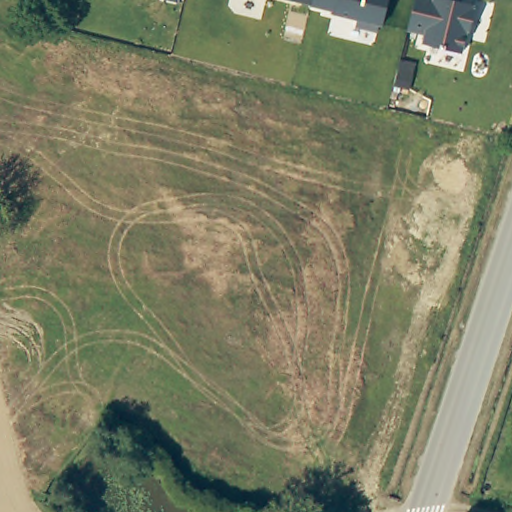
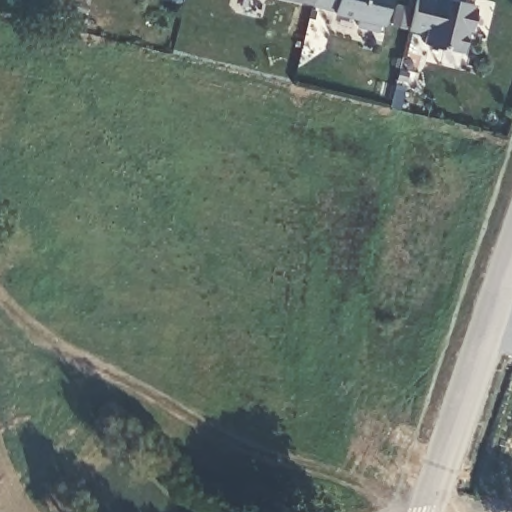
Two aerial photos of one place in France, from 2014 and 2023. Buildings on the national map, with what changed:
unchanged [(378,24),(376,30),(356,26),(358,19),(332,14),(333,10),(290,0),(388,0),(382,25),(378,24)]
unchanged [(475,5),(463,54),(422,44),(423,35),(408,30),(414,0),(462,0),(462,1),(475,5)]

